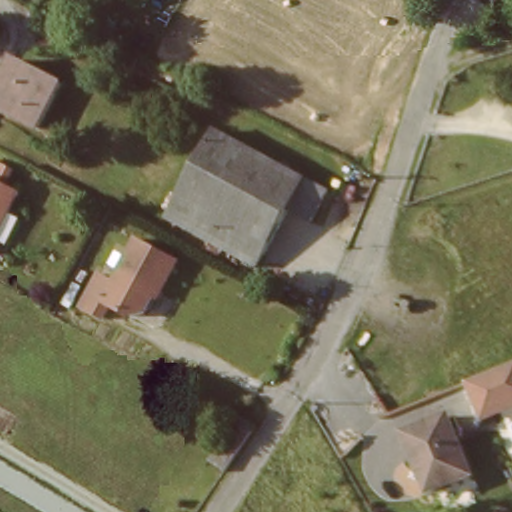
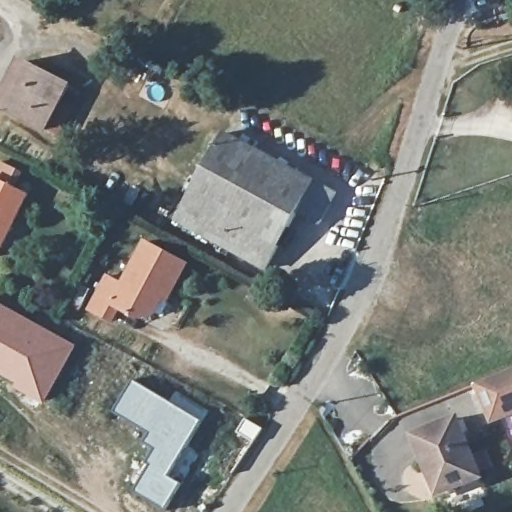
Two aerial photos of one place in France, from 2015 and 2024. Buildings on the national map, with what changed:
unchanged [(46,131),(1,108),(25,64),(70,87),(46,131)]
unchanged [(175,219),(222,130),(240,140),(295,168),(335,188),(319,219),(297,208),(267,267),(175,219)]
unchanged [(0,168),(2,165),(24,176),(16,190),(29,197),(16,221),(0,250),(0,168)]
unchanged [(127,273),(142,243),(183,265),(168,295),(163,292),(127,273)]
unchanged [(151,316),(139,320),(118,308),(111,322),(88,310),(104,279),(120,287),(127,273),(163,292),(151,316)]
new [(78,346),(44,405),(13,387),(15,384),(0,375),(0,302),(78,346)]
unchanged [(512,369),(512,412),(489,422),(473,385),(487,379),(512,369)]
new [(133,378),(202,420),(169,475),(182,484),(165,511),(132,491),(151,450),(142,444),(147,434),(111,412),(133,378)]
unchanged [(417,433),(457,418),(481,479),(441,494),(417,433)]
unchanged [(220,462),(239,432),(242,427),(247,419),(265,430),(260,438),(256,443),(237,474),(230,469),(220,462)]

